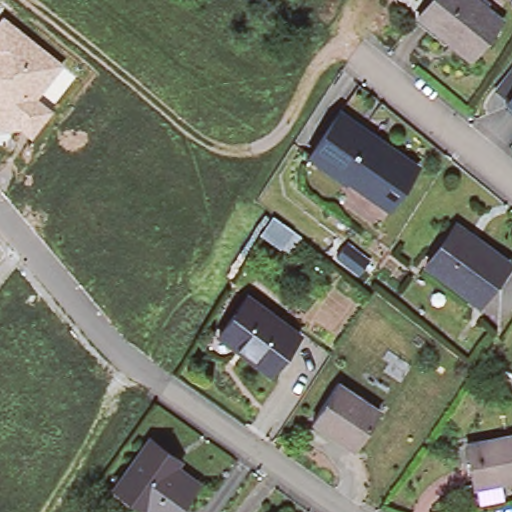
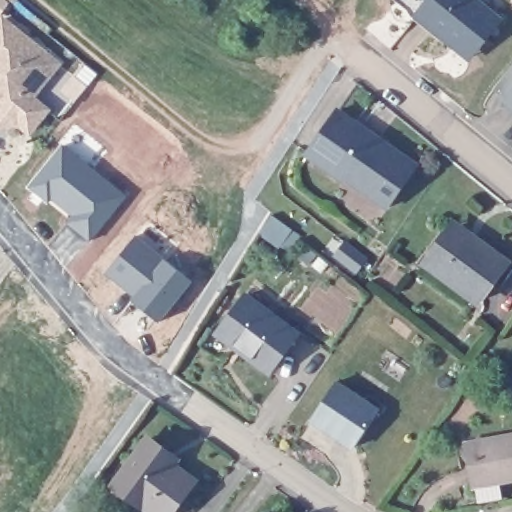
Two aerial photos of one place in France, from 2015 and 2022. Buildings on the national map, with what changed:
unchanged [(415,11),(425,0),(479,0),(500,18),(475,49),(470,55),(447,37),(415,11)]
unchanged [(18,126),(0,130),(0,17),(2,14),(63,63),(35,98),(52,109),(30,135),(18,126)]
unchanged [(504,103),(512,94),(512,110),(504,103)]
unchanged [(345,177),(310,153),(339,111),(357,123),(362,127),(417,163),(393,198),(388,205),(345,177)]
new [(63,146),(127,196),(90,242),(66,225),(72,217),(51,200),(48,204),(30,187),(63,146)]
unchanged [(448,225),(470,241),(475,234),(506,257),(477,297),(425,258),(448,225)]
new [(136,238),(191,281),(159,324),(131,301),(134,296),(105,276),(136,238)]
unchanged [(237,345),(218,331),(246,292),(299,331),(273,366),(270,370),(237,345)]
unchanged [(322,429),(308,420),(334,381),(375,410),(354,440),(349,447),(322,429)]
unchanged [(480,499),(475,481),(466,439),(512,430),(512,474),(500,476),(503,494),(480,499)]
unchanged [(172,512),(150,512),(114,487),(148,439),(168,453),(176,459),(172,465),(194,481),(172,512)]

